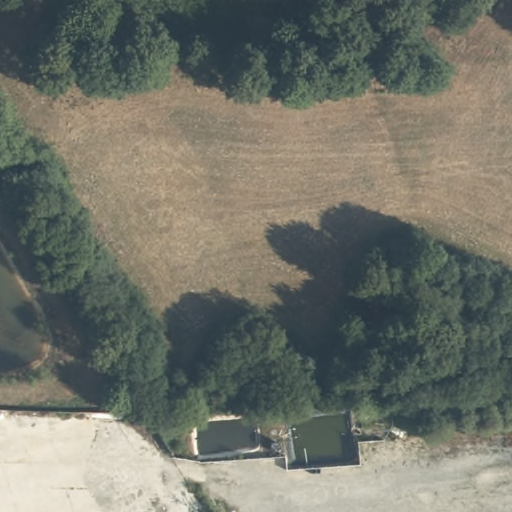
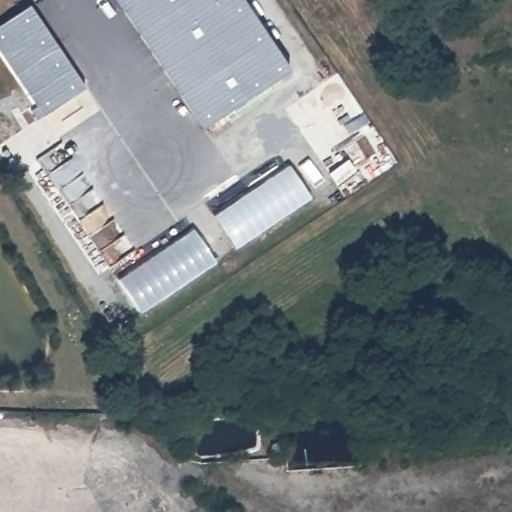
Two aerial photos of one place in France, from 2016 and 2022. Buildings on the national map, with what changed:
new [(289,68),(204,126),(117,0),(243,0),(289,68)]
new [(84,86),(42,113),(0,52),(0,24),(30,5),(84,86)]
new [(288,162),(311,197),(235,247),(212,214),(288,162)]
new [(193,227),(214,260),(140,310),(118,278),(193,227)]

